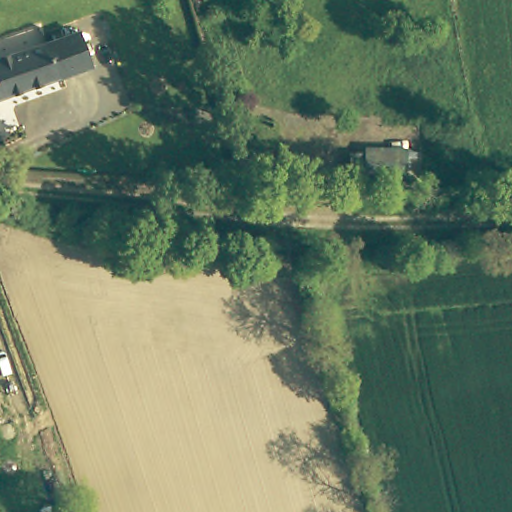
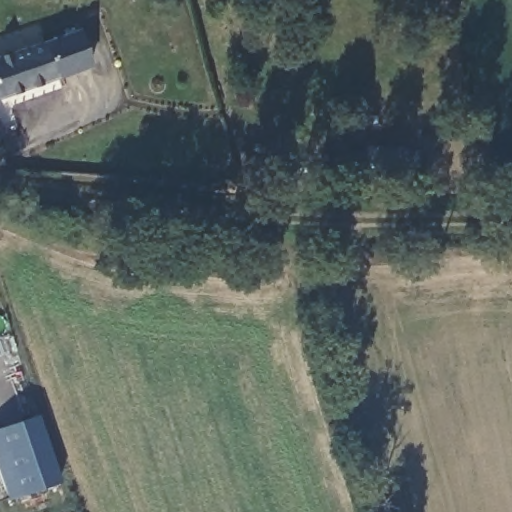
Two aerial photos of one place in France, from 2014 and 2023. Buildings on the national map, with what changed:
unchanged [(72,30),(86,62),(62,73),(49,79),(36,47),(72,30)]
unchanged [(49,79),(0,101),(0,63),(4,62),(9,60),(36,47),(49,79)]
unchanged [(410,145),(410,172),(355,171),(356,145),(410,145)]
new [(10,501),(0,471),(0,428),(39,415),(61,482),(10,501)]

